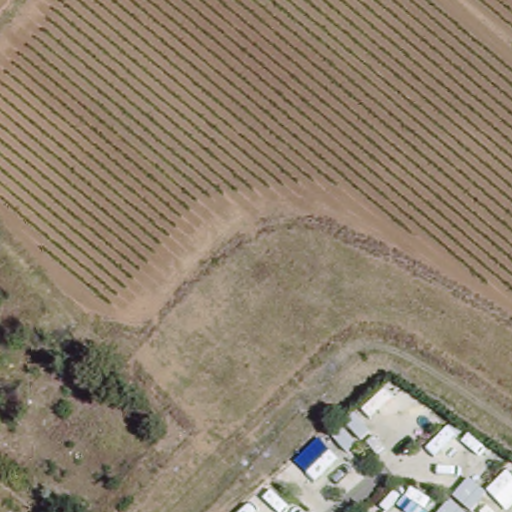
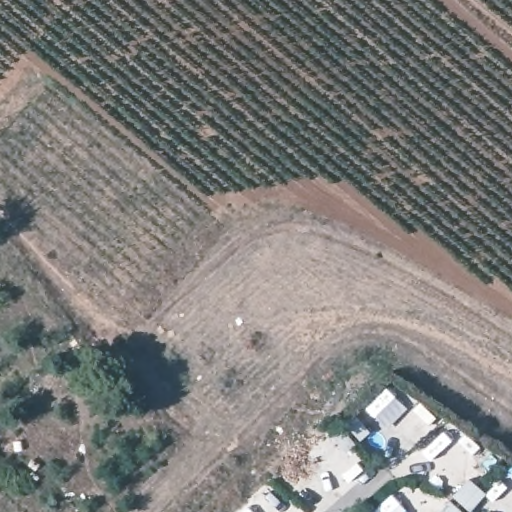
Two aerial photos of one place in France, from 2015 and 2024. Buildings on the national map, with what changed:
[]

